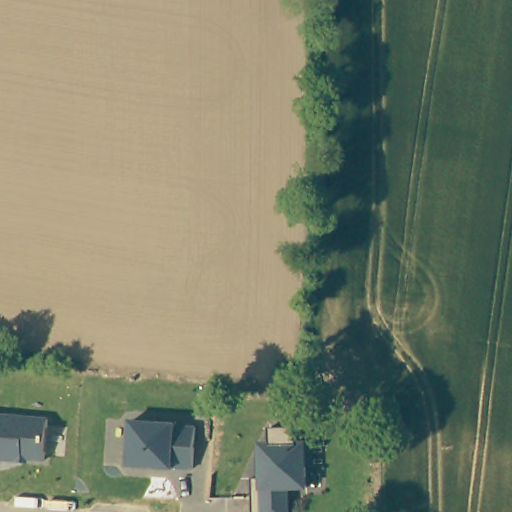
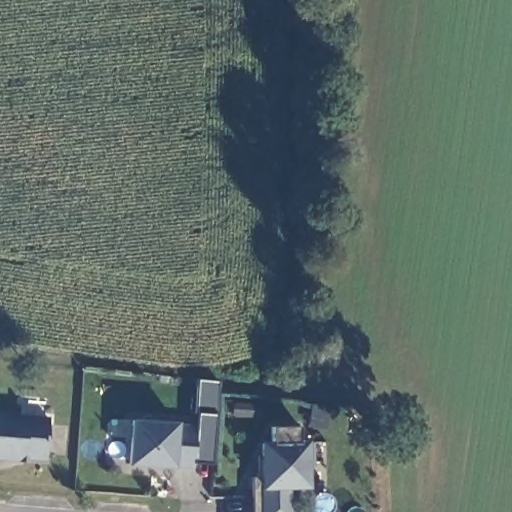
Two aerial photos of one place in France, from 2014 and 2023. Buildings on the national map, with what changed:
unchanged [(0,459),(0,415),(49,418),(46,460),(30,458),(29,461),(20,460),(0,459)]
unchanged [(196,425),(195,470),(174,470),(127,466),(130,420),(196,425)]
unchanged [(258,458),(263,458),(263,446),(272,446),(272,429),(300,428),(301,445),(312,445),(313,469),(308,469),(308,489),(290,490),(290,512),(253,512),(252,480),(259,479),(258,458)]

